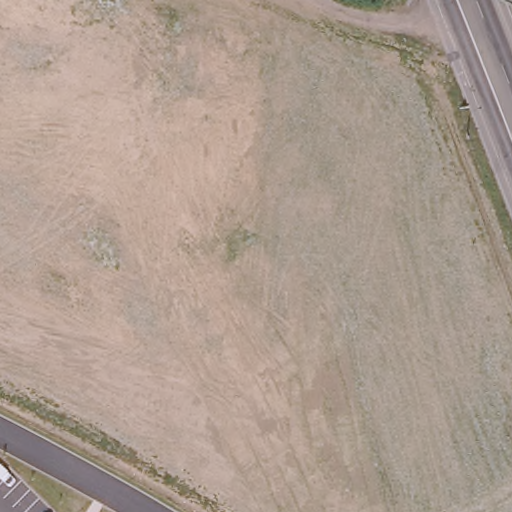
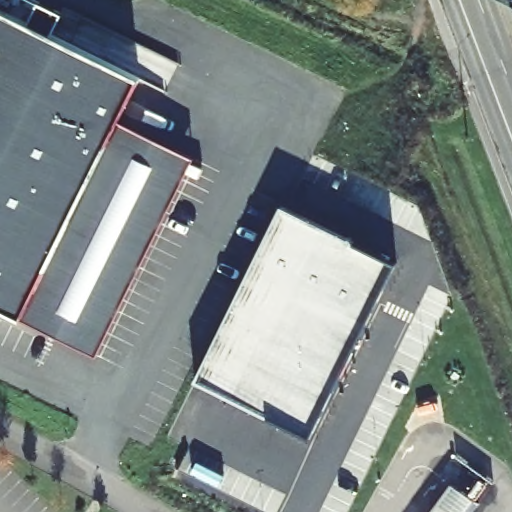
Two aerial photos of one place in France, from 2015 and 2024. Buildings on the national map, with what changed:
new [(34,3),(57,14),(44,35),(140,77),(117,121),(161,142),(163,222),(93,352),(0,307),(0,16),(23,26),(34,3)]
new [(279,210),(391,262),(306,442),(193,384),(279,210)]
new [(451,483),(438,474),(453,454),(493,484),(479,504),(473,512),(428,512),(436,502),(451,483)]

